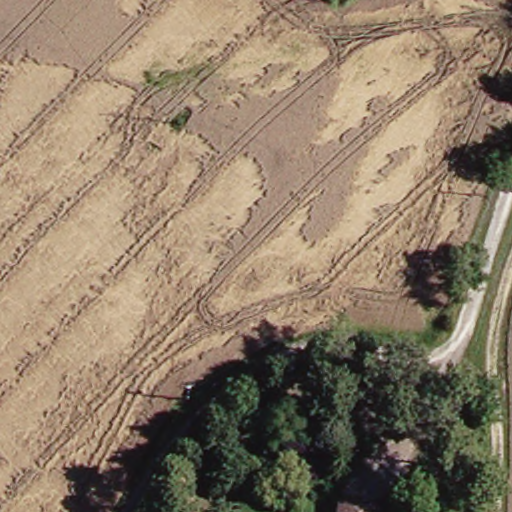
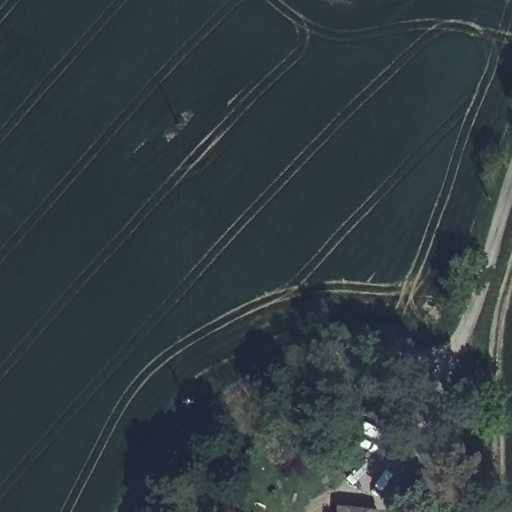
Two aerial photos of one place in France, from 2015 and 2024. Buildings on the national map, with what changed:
unchanged [(341,512),(329,512),(329,511),(341,512)]

